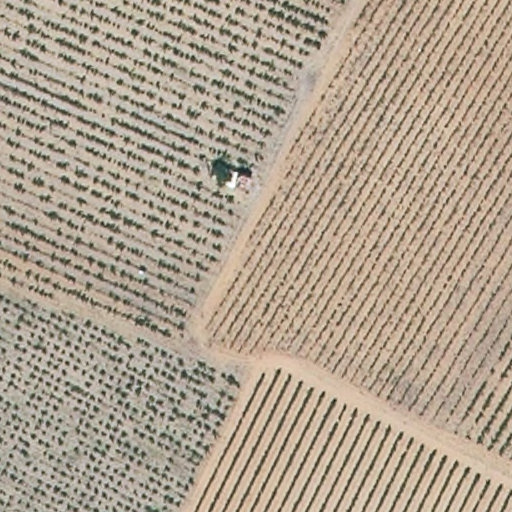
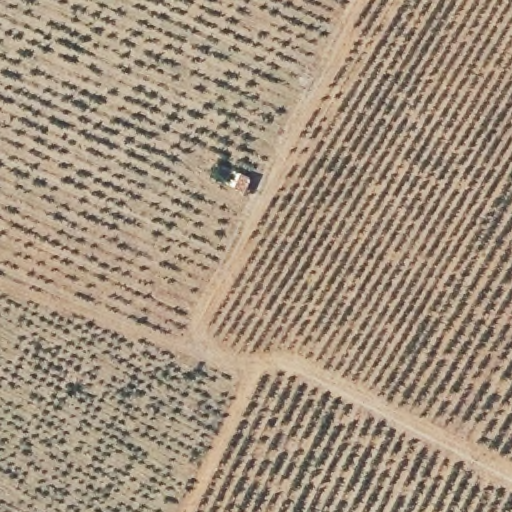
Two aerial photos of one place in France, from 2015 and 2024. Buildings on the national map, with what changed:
unchanged [(238,167),(253,173),(249,189),(233,185),(238,167)]

